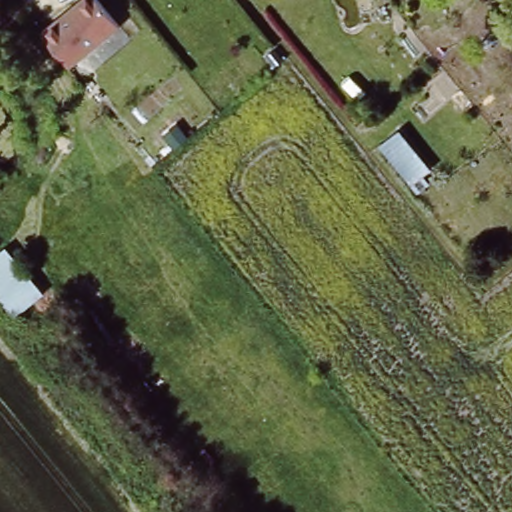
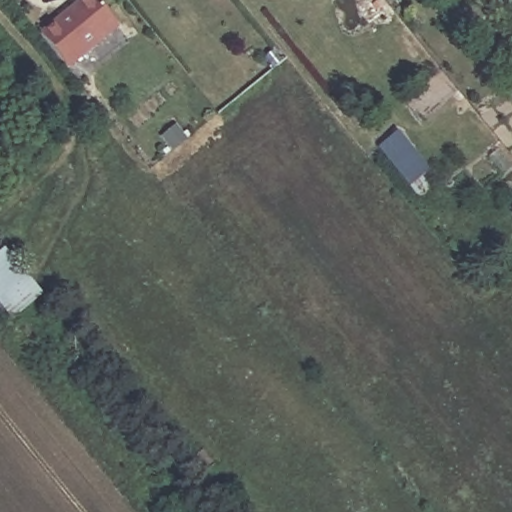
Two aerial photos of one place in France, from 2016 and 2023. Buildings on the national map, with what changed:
unchanged [(70,0),(102,0),(119,20),(68,62),(38,26),(70,0)]
unchanged [(398,132),(430,171),(423,176),(430,185),(416,194),(377,146),(398,132)]
unchanged [(14,321),(0,307),(0,254),(3,251),(44,295),(14,321)]

